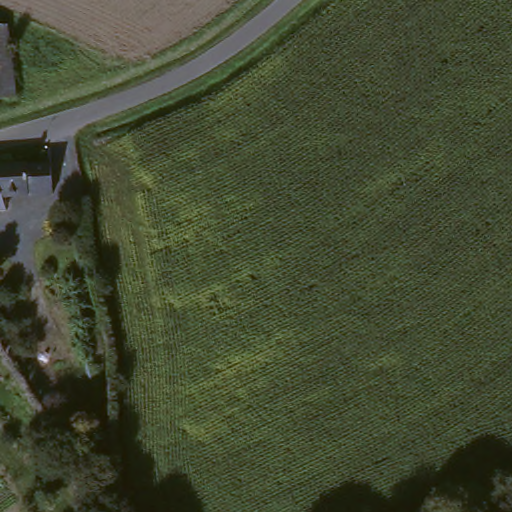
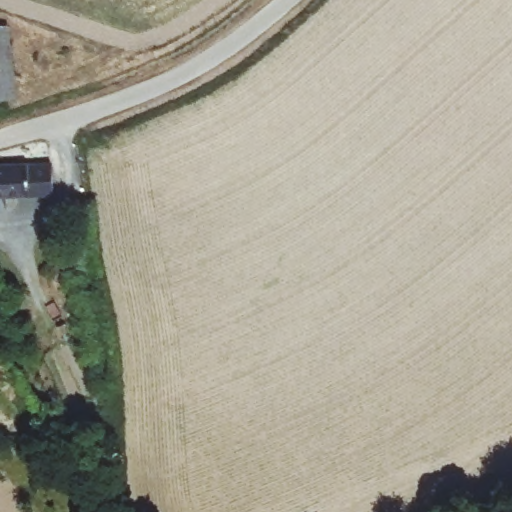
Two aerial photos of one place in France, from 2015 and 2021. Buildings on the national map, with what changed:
unchanged [(0,96),(0,41),(9,94),(0,96)]
unchanged [(49,189),(0,196),(0,163),(46,159),(49,189)]

